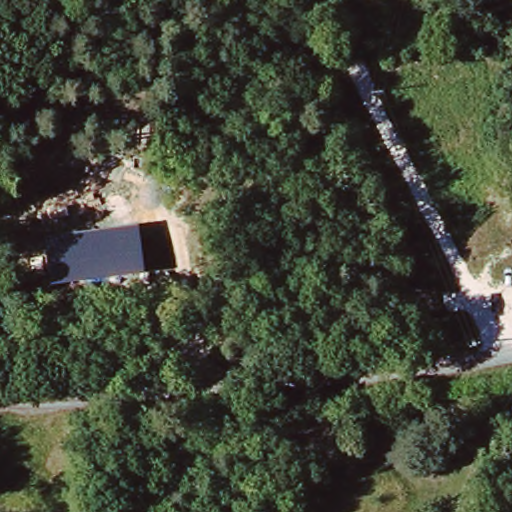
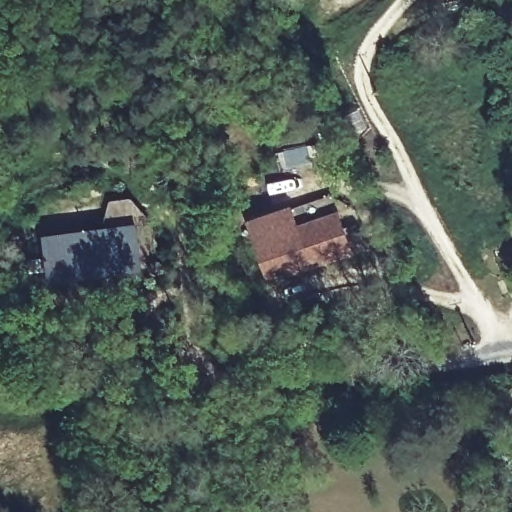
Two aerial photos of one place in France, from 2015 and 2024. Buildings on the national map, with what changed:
new [(350,255),(268,282),(247,220),(291,206),(298,225),(335,211),(350,255)]
unchanged [(143,271),(50,282),(45,233),(137,224),(143,271)]

